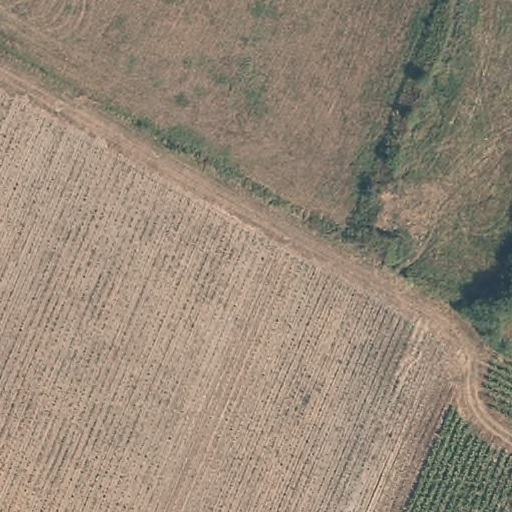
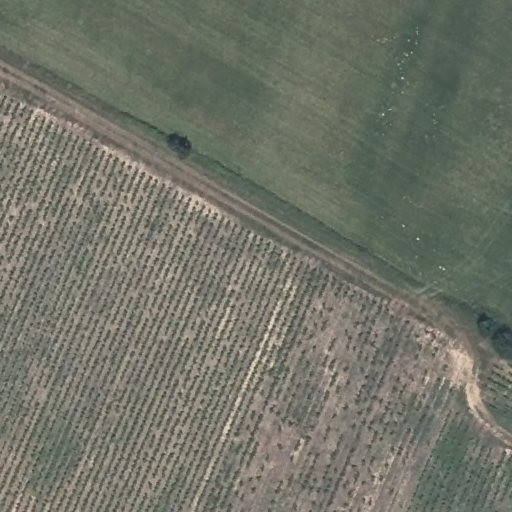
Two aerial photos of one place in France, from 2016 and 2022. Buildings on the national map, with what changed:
unchanged [(379,189),(401,194),(391,236),(370,231),(379,189)]

